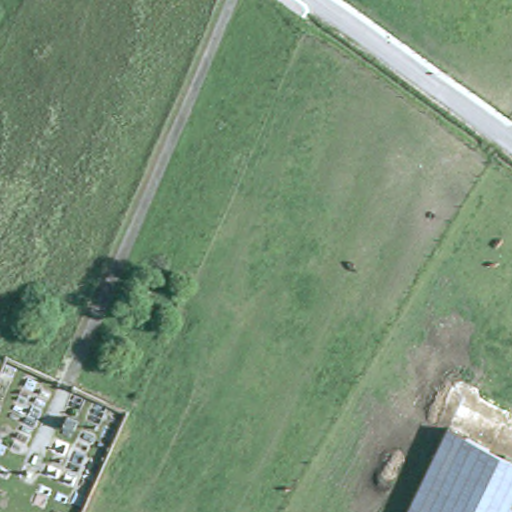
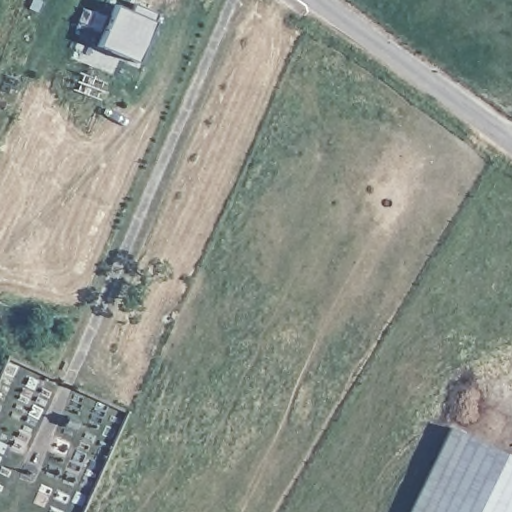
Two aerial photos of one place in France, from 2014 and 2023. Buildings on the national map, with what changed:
new [(118,4),(134,11),(137,3),(162,14),(141,63),(101,46),(118,4)]
unchanged [(447,425),(512,458),(512,512),(404,512),(447,425)]

